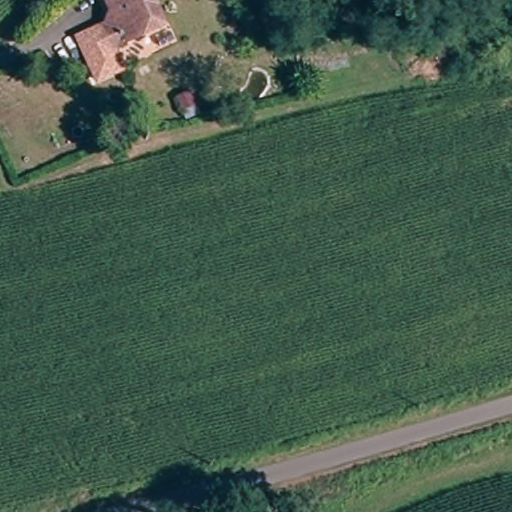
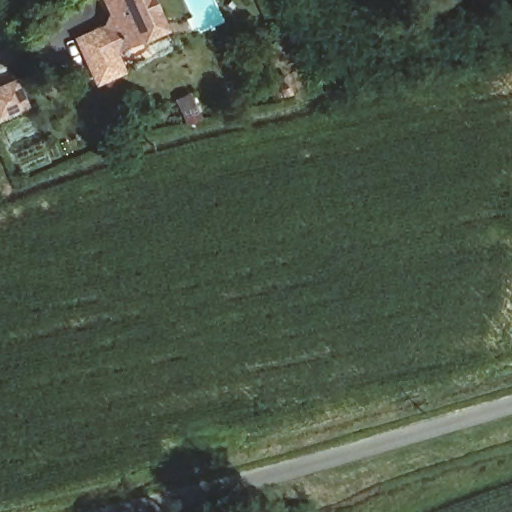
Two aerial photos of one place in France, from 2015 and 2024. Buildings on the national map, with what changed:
unchanged [(117,70),(95,79),(89,67),(76,35),(102,24),(113,19),(105,0),(151,0),(162,25),(112,46),(116,56),(120,68),(117,70)]
new [(29,105),(0,120),(0,86),(18,78),(29,105)]

